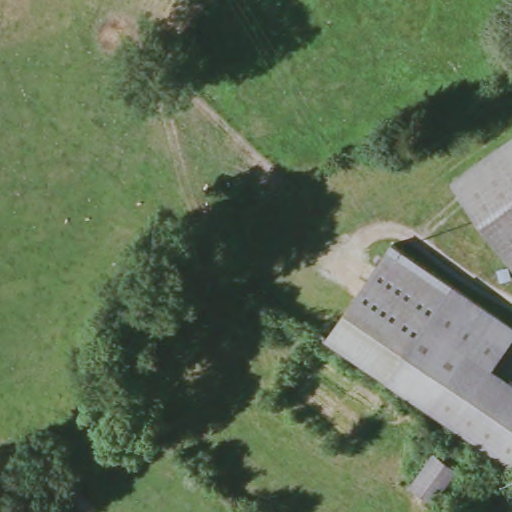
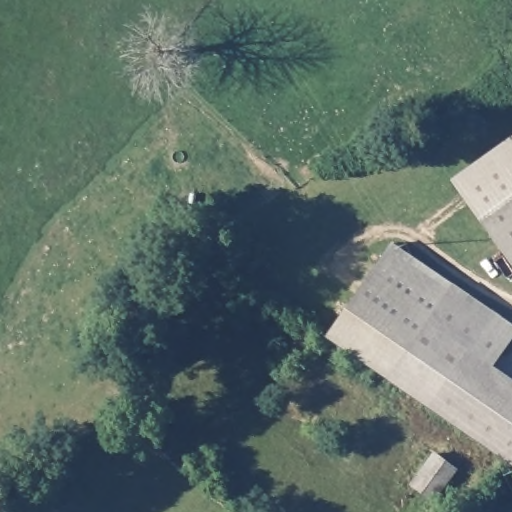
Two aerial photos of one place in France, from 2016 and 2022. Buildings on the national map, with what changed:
unchanged [(512,140),(512,265),(454,178),(512,140)]
unchanged [(389,240),(512,322),(512,328),(488,364),(512,380),(512,465),(502,458),(387,379),(357,359),(325,337),(389,240)]
unchanged [(430,502),(407,485),(430,456),(432,458),(440,446),(459,459),(451,471),(453,473),(430,502)]
unchanged [(485,469),(470,491),(459,485),(475,461),(485,469)]

